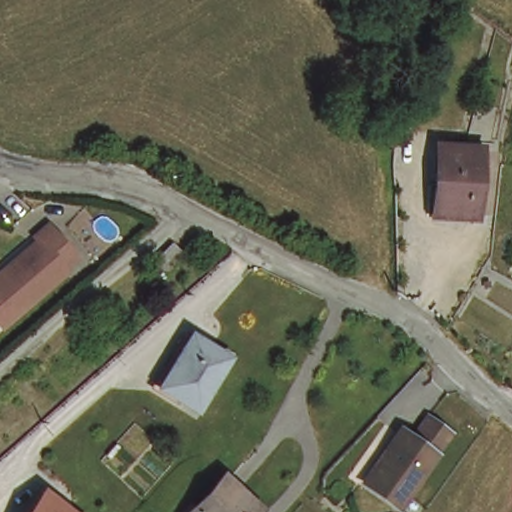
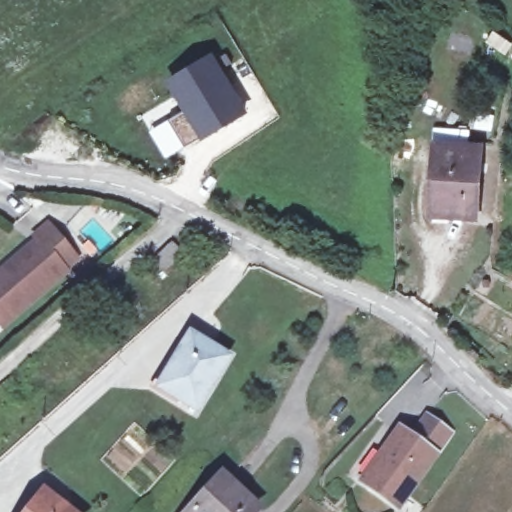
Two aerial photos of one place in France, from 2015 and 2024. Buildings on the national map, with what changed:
new [(212,51),(247,112),(202,140),(198,136),(185,145),(170,117),(182,110),(165,79),(212,51)]
unchanged [(477,207),(430,204),(435,138),(482,140),(477,207)]
unchanged [(2,271),(0,268),(0,267),(33,238),(30,234),(43,223),(72,256),(59,268),(61,270),(0,321),(0,273),(2,271)]
unchanged [(512,252),(502,250),(507,230),(512,231),(512,252)]
unchanged [(175,233),(190,245),(168,267),(155,255),(175,233)]
unchanged [(192,330),(224,350),(193,400),(160,379),(192,330)]
unchanged [(400,421),(415,432),(430,410),(452,427),(398,502),(363,475),(400,421)]
unchanged [(265,501),(256,512),(181,512),(222,461),(265,501)]
unchanged [(87,512),(25,512),(47,483),(87,512)]

